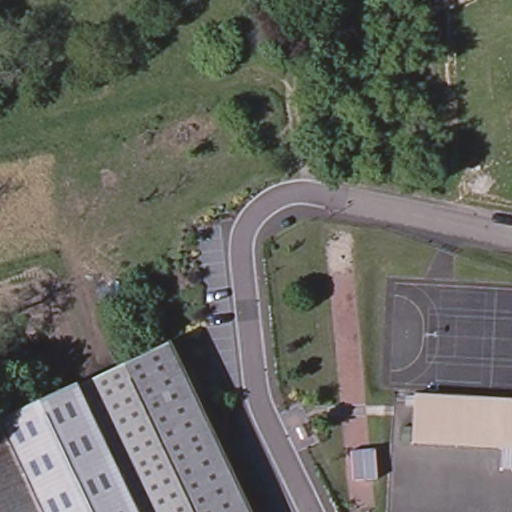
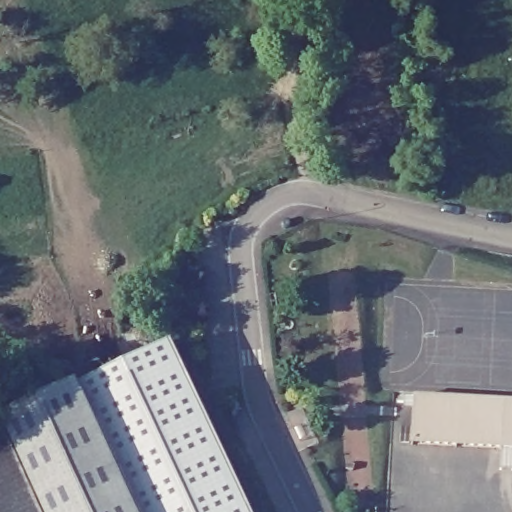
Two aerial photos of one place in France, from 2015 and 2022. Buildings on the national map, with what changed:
unchanged [(243,512),(0,512),(0,423),(75,390),(167,346),(243,512)]
unchanged [(512,404),(512,453),(410,448),(413,398),(512,404)]

